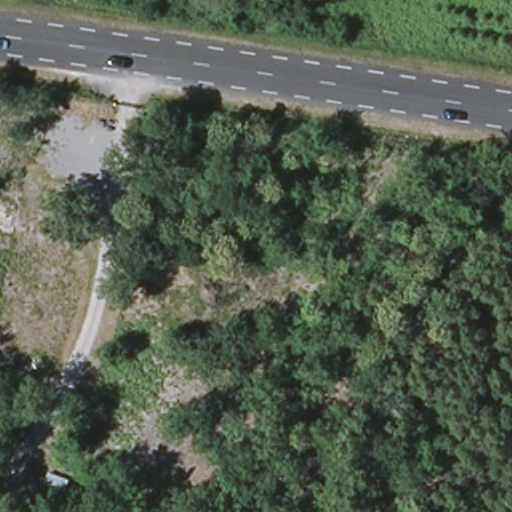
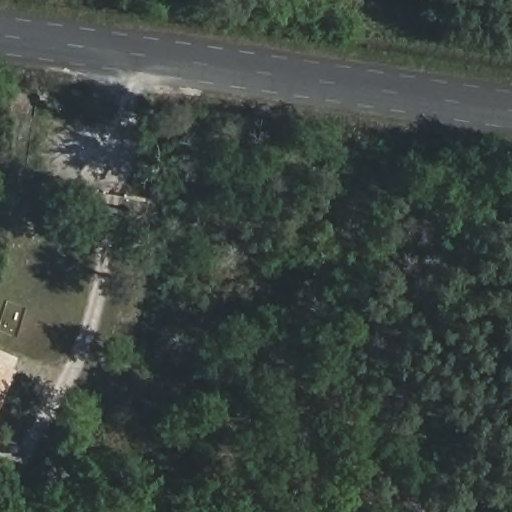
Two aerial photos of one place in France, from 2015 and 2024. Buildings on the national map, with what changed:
new [(0,362),(17,369),(0,406),(0,362)]

